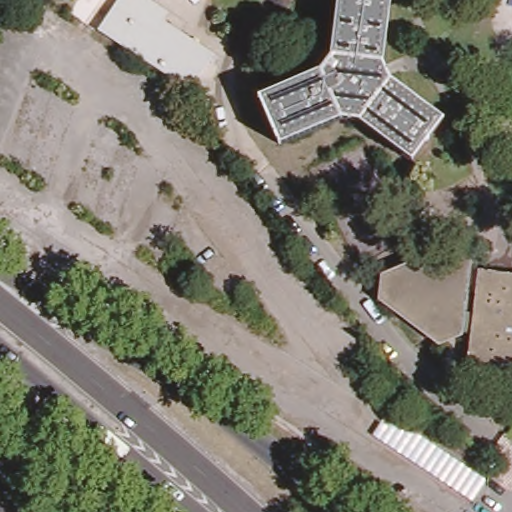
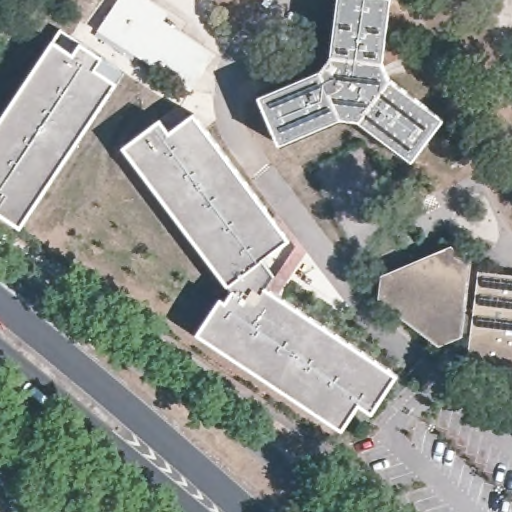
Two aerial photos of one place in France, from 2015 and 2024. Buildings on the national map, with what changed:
unchanged [(158,0),(174,10),(169,20),(217,50),(191,89),(100,30),(120,0),(158,0)]
unchanged [(411,160),(361,120),(343,117),(278,143),(258,95),(320,69),(330,54),(335,0),(388,0),(383,57),(390,77),(443,119),(411,160)]
new [(61,27),(81,41),(125,69),(117,84),(21,228),(0,214),(0,118),(52,38),(61,27)]
new [(196,113),(290,239),(261,260),(274,276),(266,287),(398,374),(373,413),(360,405),(342,430),(198,334),(221,298),(226,302),(233,290),(226,284),(122,147),(160,119),(171,133),(196,113)]
unchanged [(471,334),(457,332),(441,339),(383,298),(384,275),(448,248),(466,261),(461,310),(474,310),(479,270),(512,274),(512,374),(467,369),(471,334)]

